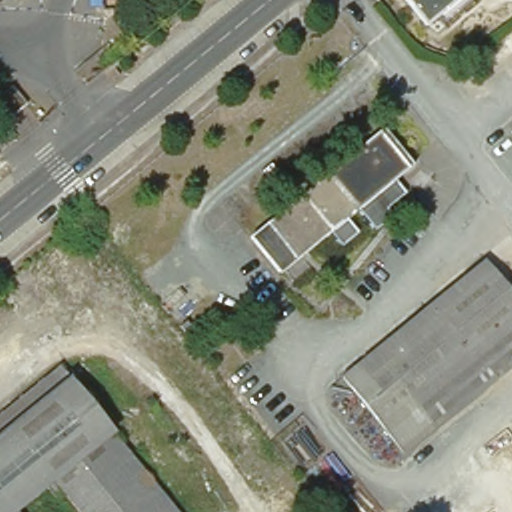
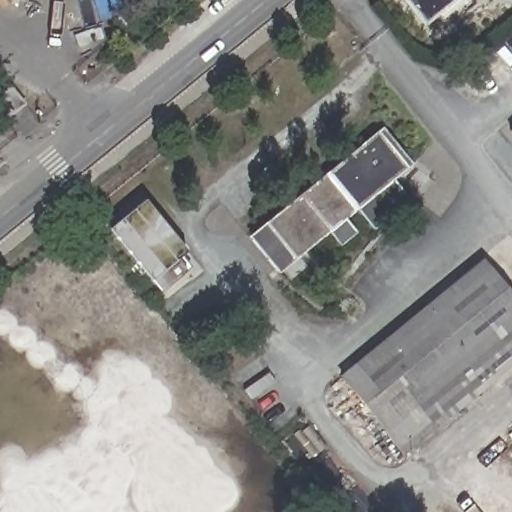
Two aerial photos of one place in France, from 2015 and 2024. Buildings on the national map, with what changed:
unchanged [(425,26),(404,0),(456,0),(425,26)]
unchanged [(0,116),(0,96),(5,91),(19,107),(4,121),(0,116)]
unchanged [(336,247),(325,233),(292,260),(275,274),(245,238),(262,224),(379,129),(408,165),(389,181),(353,211),(341,220),(353,234),(336,247)]
unchanged [(271,165),(286,182),(278,189),(263,171),(271,165)]
unchanged [(400,194),(381,209),(387,216),(370,231),(353,211),(389,181),(400,194)]
new [(186,252),(176,261),(185,272),(164,289),(112,227),(143,201),(186,252)]
unchanged [(342,377),(482,263),(512,299),(512,331),(387,432),(342,377)]
unchanged [(387,432),(512,331),(512,365),(405,453),(387,432)]
demolished [(56,365),(177,512),(76,512),(51,482),(16,511),(17,512),(0,512),(0,411),(56,365)]

